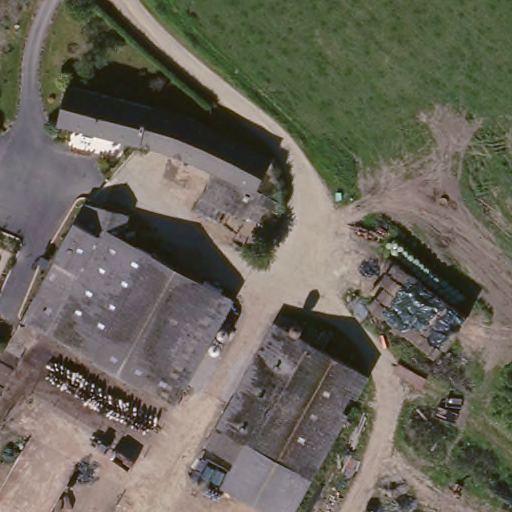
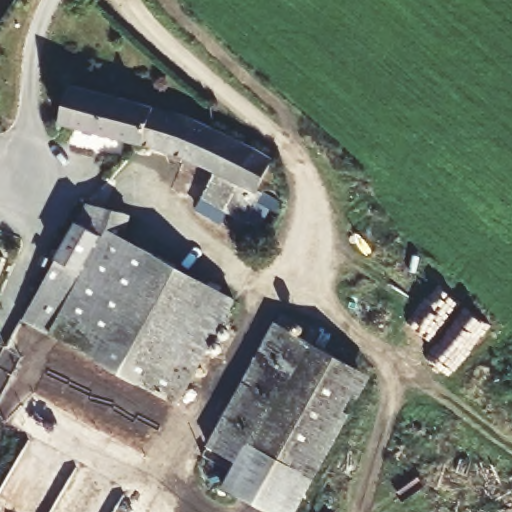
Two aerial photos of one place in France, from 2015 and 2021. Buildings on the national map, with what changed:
unchanged [(61,121),(70,82),(80,85),(155,105),(144,142),(61,121)]
unchanged [(216,170),(208,165),(174,151),(144,142),(155,105),(190,114),(275,156),(260,187),(265,190),(251,215),(247,221),(224,206),(202,195),(216,170)]
unchanged [(85,202),(126,214),(120,237),(103,229),(47,333),(21,318),(85,202)]
unchanged [(47,333),(103,229),(120,237),(230,297),(174,402),(47,333)]
unchanged [(272,325),(301,340),(243,445),(233,465),(204,449),(272,325)]
unchanged [(310,482),(294,512),(261,512),(219,489),(233,465),(243,445),(301,340),(368,377),(310,482)]

